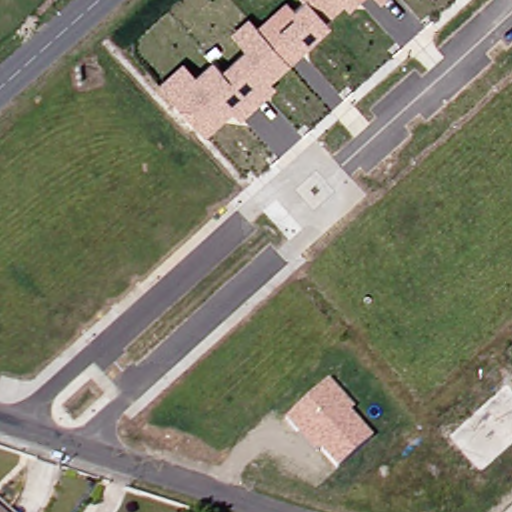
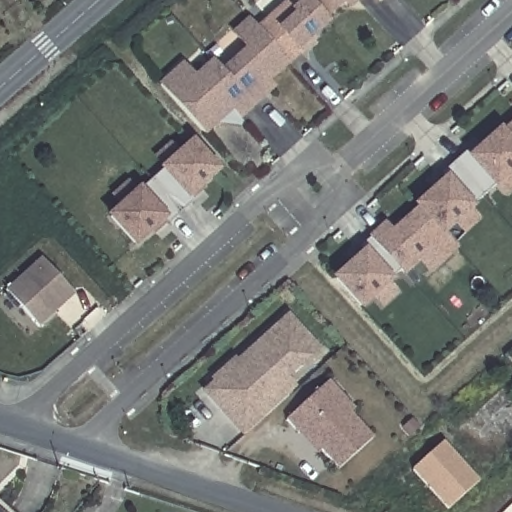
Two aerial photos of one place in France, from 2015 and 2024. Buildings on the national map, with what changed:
unchanged [(195,68),(207,59),(216,66),(242,46),(233,34),(253,15),(265,29),(294,0),(360,0),(351,9),(347,8),(319,31),(321,40),(273,81),(277,87),(240,120),(235,115),(207,137),(159,81),(188,57),(195,68)]
unchanged [(372,0),(387,0),(377,7),(372,0)]
new [(500,187),(495,190),(493,188),(472,206),(481,220),(465,235),(456,225),(448,233),(460,248),(430,274),(420,262),(404,276),(398,269),(388,276),(393,281),(400,292),(383,308),(374,298),(360,310),(332,279),(362,251),(359,248),(370,238),(368,236),(385,221),(392,229),(413,206),(444,178),(441,175),(462,154),(466,158),(500,128),(503,130),(512,122),(512,192),(506,197),(500,187)]
unchanged [(222,171),(136,249),(106,217),(159,168),(193,138),(222,171)]
new [(40,325),(8,289),(42,257),(74,294),(40,325)]
new [(221,380),(218,376),(239,357),(251,370),(270,353),(260,342),(293,312),(322,345),(285,378),(296,390),(247,433),(210,390),(221,380)]
unchanged [(356,410),(353,415),(375,439),(338,472),(318,450),(313,453),(286,421),(328,381),(356,410)]
new [(449,504),(413,464),(444,436),(479,477),(449,504)]

